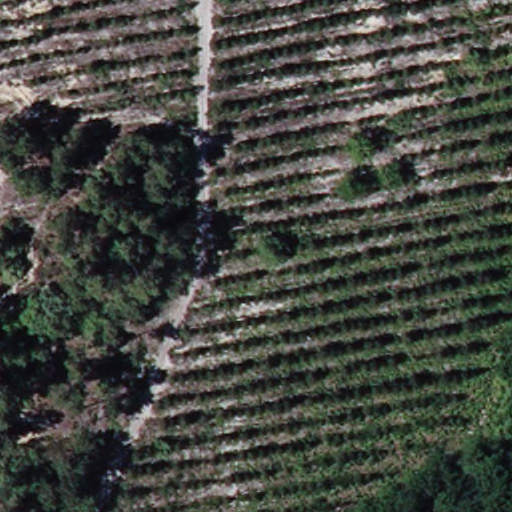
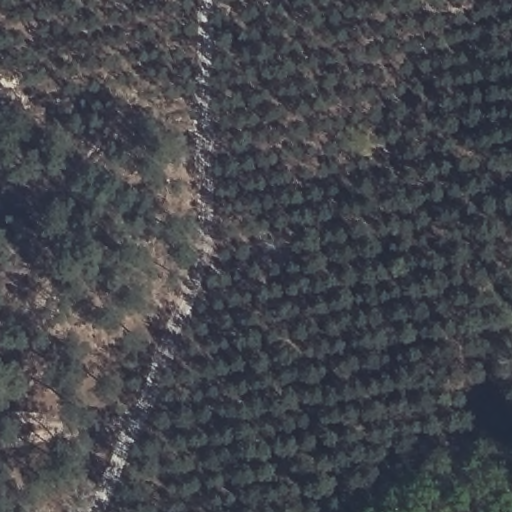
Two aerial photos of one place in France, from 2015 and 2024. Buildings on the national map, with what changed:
[]

